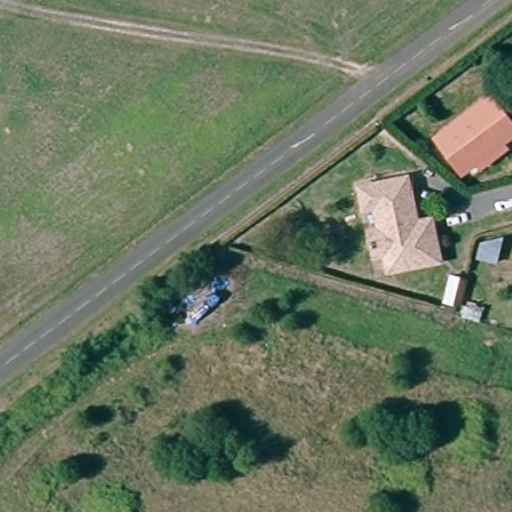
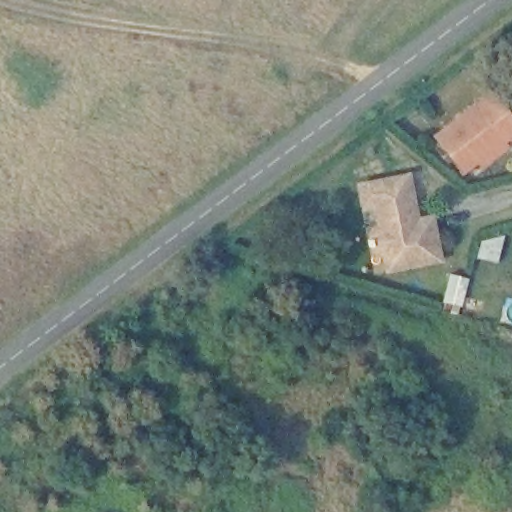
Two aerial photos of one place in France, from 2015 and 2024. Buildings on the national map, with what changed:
unchanged [(481,159),(467,170),(441,131),(499,91),(512,110),(512,139),(509,141),(512,146),(512,148),(486,165),(481,159)]
unchanged [(382,256),(375,257),(369,255),(366,253),(364,249),(364,243),(365,239),(371,234),(378,231),(374,208),(363,209),(360,191),(411,183),(415,205),(409,206),(412,224),(428,221),(436,266),(385,274),(382,256)]
unchanged [(458,294),(444,291),(447,271),(464,274),(458,294)]

